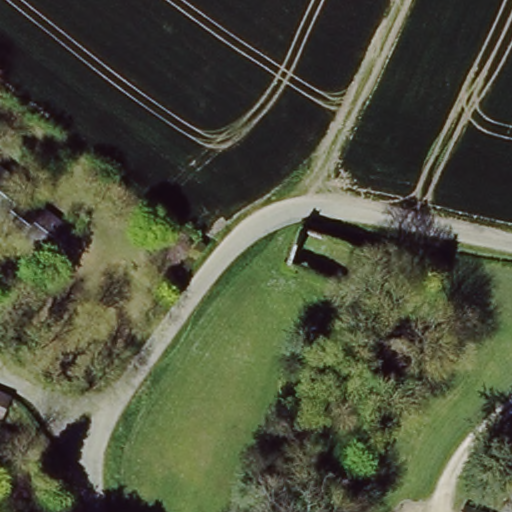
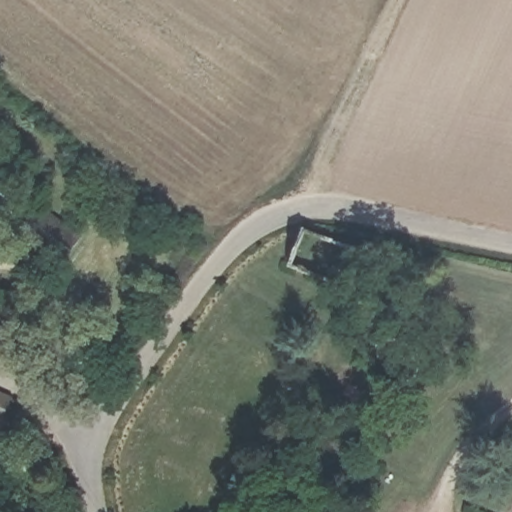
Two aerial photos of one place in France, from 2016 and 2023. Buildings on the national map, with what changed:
unchanged [(0,218),(0,165),(27,187),(17,200),(37,215),(22,235),(0,218)]
unchanged [(58,262),(22,235),(37,215),(45,205),(81,232),(58,262)]
unchanged [(0,416),(0,391),(9,395),(0,416)]

